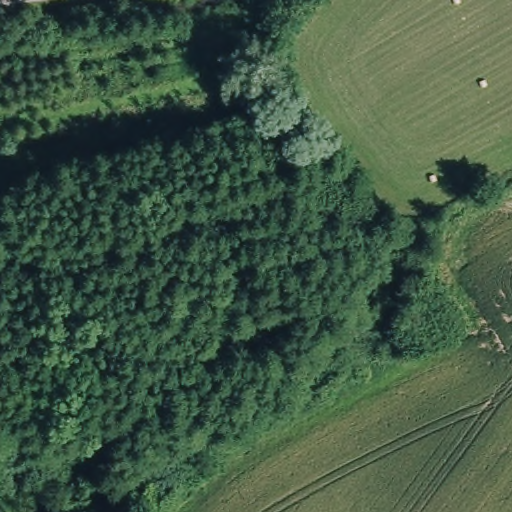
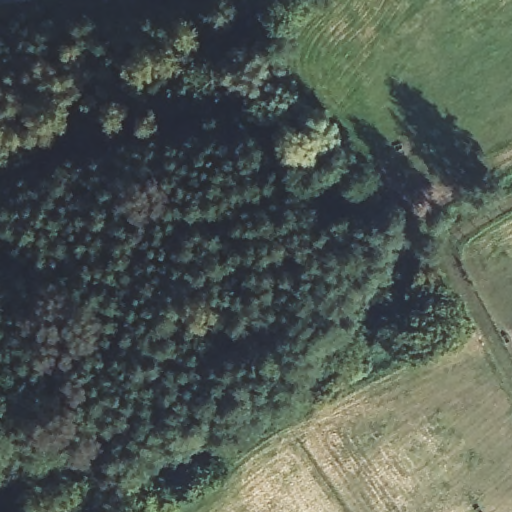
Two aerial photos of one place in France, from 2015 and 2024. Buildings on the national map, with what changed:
[]

